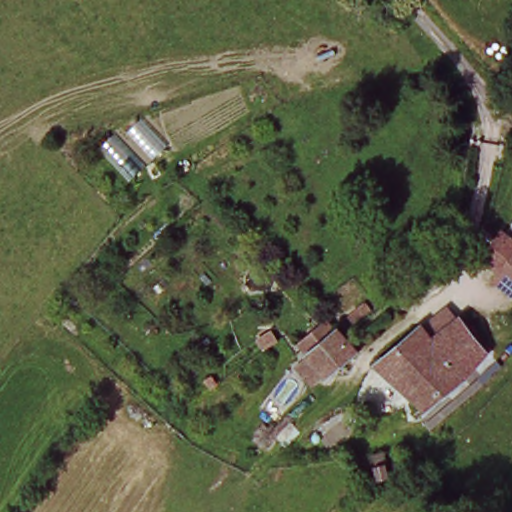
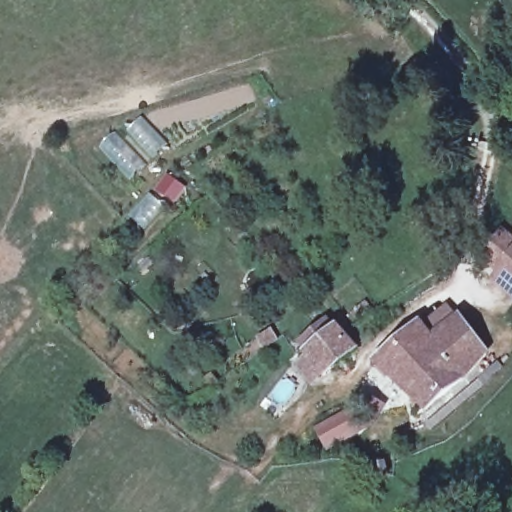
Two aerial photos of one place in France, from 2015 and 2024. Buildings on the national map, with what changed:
unchanged [(493,274),(512,251),(512,289),(493,274)]
unchanged [(481,343),(446,382),(421,405),(373,370),(406,334),(426,348),(451,320),(481,343)]
unchanged [(354,354),(323,376),(301,351),(336,328),(354,354)]

